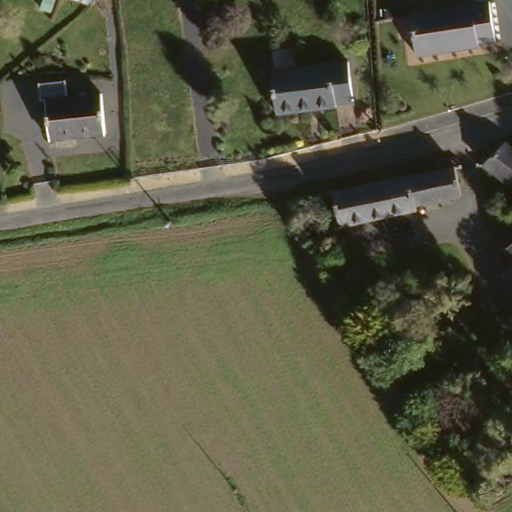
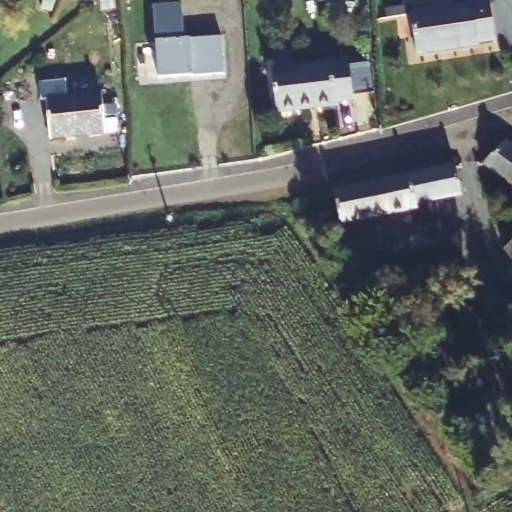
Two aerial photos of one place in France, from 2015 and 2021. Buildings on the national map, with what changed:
unchanged [(483,30),(485,37),(429,57),(412,16),(455,0),(493,0),(502,24),(483,30)]
new [(182,4),(184,39),(190,38),(222,36),(225,74),(192,76),(159,78),(155,7),(182,4)]
unchanged [(355,96),(338,98),(337,102),(277,110),(270,65),(348,58),(355,96)]
unchanged [(0,73),(10,75),(11,85),(0,83),(0,73)]
unchanged [(54,99),(40,99),(40,81),(67,80),(67,94),(109,94),(112,131),(57,134),(54,99)]
unchanged [(490,157),(510,138),(511,138),(512,139),(512,176),(490,157)]
unchanged [(423,199),(425,205),(359,218),(347,219),(340,189),(457,163),(464,190),(423,199)]
unchanged [(510,249),(512,247),(512,251),(510,249)]

